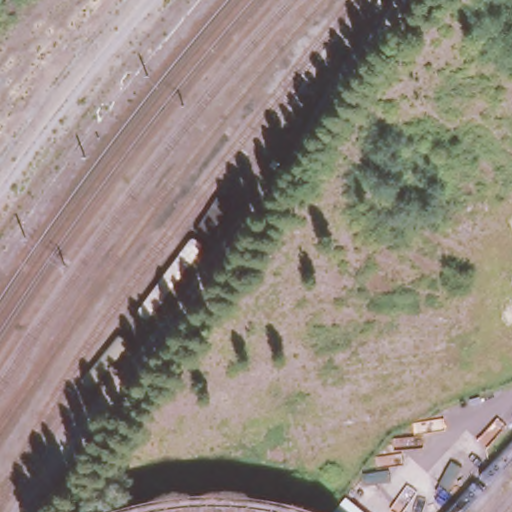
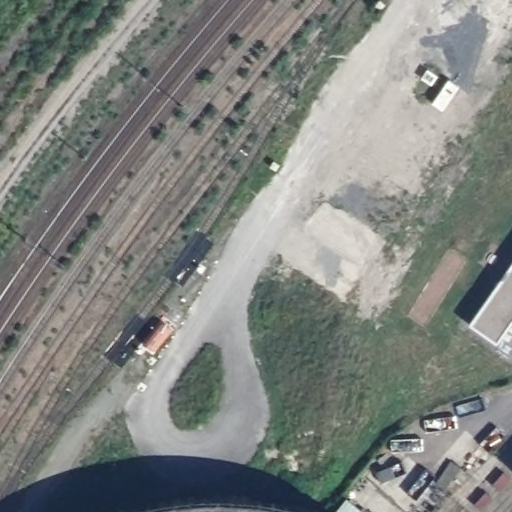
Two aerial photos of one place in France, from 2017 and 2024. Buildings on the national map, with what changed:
new [(497,340),(473,323),(512,268),(512,319),(497,340)]
unchanged [(161,501),(223,496),(263,498),(296,505),(321,512),(119,512),(122,511),(161,501)]

